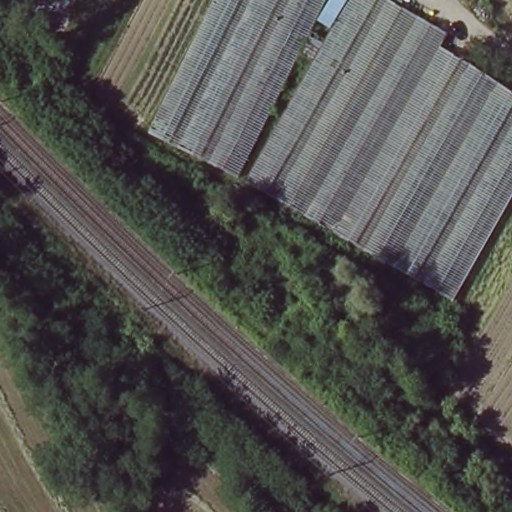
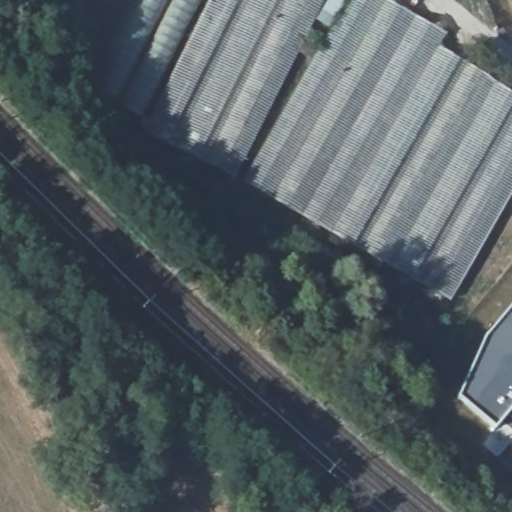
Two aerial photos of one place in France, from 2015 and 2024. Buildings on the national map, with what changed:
unchanged [(209,0),(323,0),(234,176),(143,131),(209,0)]
unchanged [(345,0),(389,0),(444,32),(437,45),(512,95),(512,191),(451,298),(241,183),(345,0)]
new [(485,335),(512,303),(512,409),(496,429),(457,397),(485,335)]

